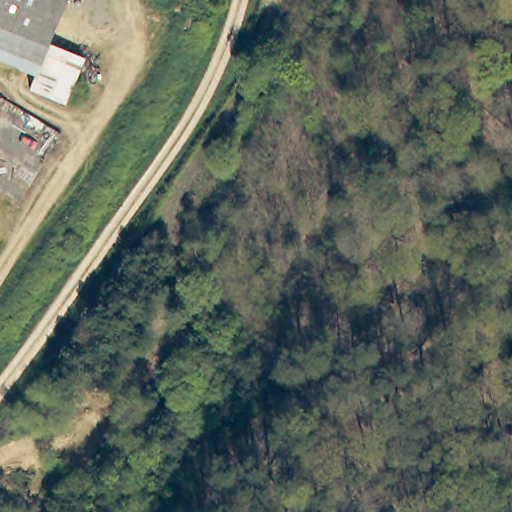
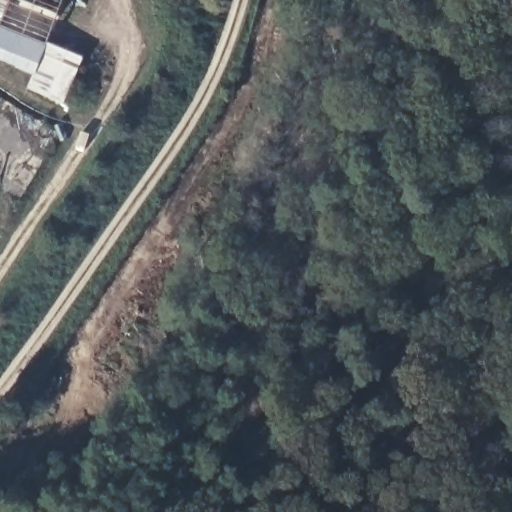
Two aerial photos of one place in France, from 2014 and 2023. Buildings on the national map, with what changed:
unchanged [(0,0),(60,0),(43,42),(0,25),(0,0)]
unchanged [(0,48),(0,25),(43,42),(34,62),(0,48)]
unchanged [(82,110),(62,102),(24,87),(34,62),(43,42),(76,55),(70,70),(76,72),(94,80),(82,110)]

